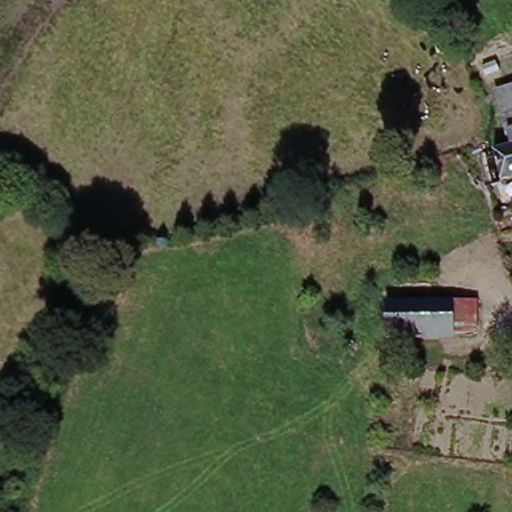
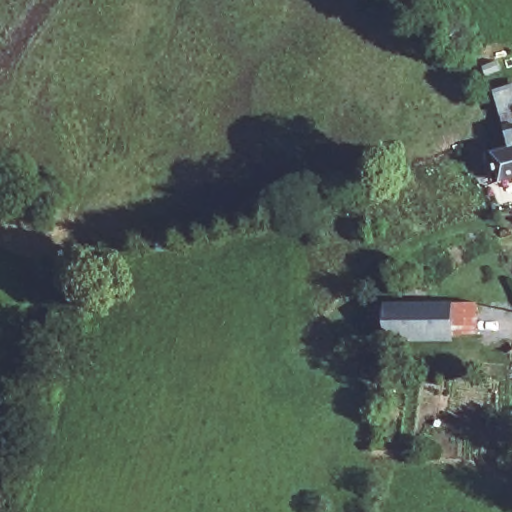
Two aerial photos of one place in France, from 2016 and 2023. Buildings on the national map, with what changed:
unchanged [(498,154),(501,152),(512,151),(512,187),(505,188),(498,154)]
unchanged [(409,286),(437,291),(435,310),(464,314),(461,339),(386,328),(390,304),(407,307),(409,286)]

